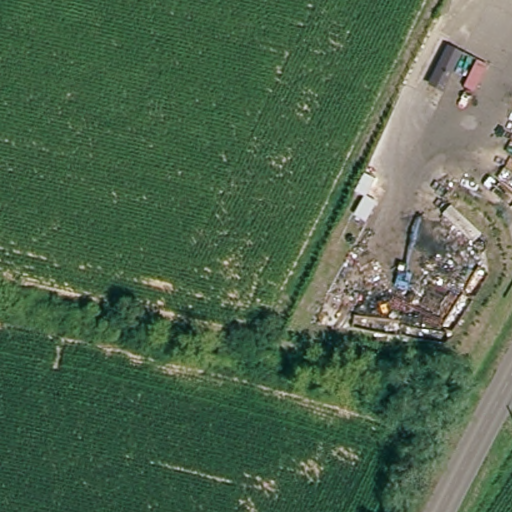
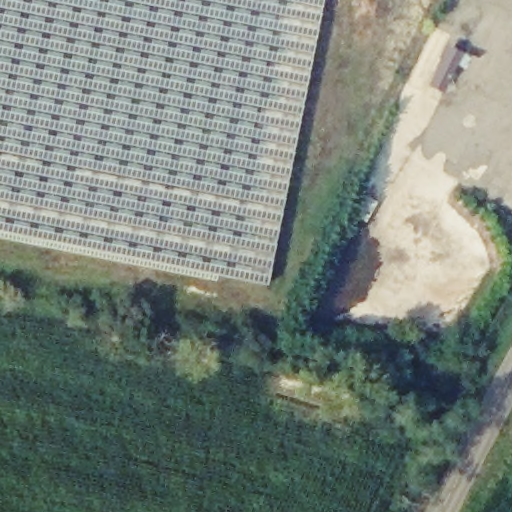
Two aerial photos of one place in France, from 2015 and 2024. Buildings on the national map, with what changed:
new [(266,285),(0,233),(0,0),(322,0),(266,285)]
demolished [(483,220),(447,205),(454,189),(490,207),(483,220)]

